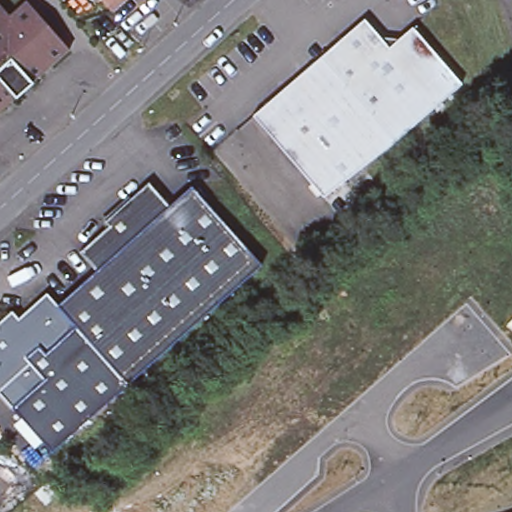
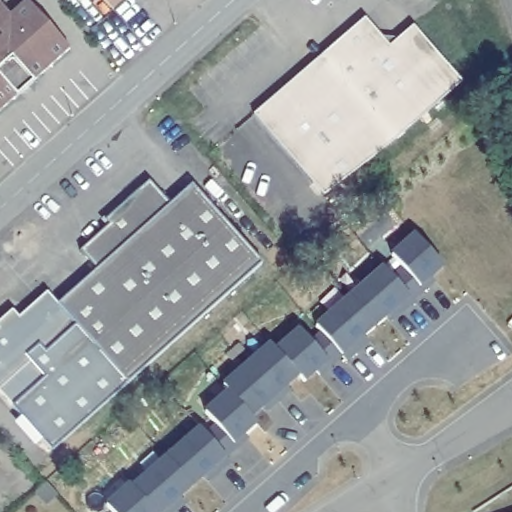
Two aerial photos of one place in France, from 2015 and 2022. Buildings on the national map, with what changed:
unchanged [(113,12),(102,0),(126,0),(113,12)]
unchanged [(33,84),(34,85),(18,100),(16,98),(0,112),(0,6),(10,19),(29,3),(69,51),(33,84)]
unchanged [(366,21),(391,49),(414,28),(463,85),(375,159),(303,75),(366,21)]
unchanged [(254,117),(303,75),(375,159),(324,198),(254,117)]
unchanged [(267,267),(144,377),(78,294),(103,271),(88,253),(116,228),(113,223),(156,186),(174,207),(197,187),(267,267)]
new [(133,483),(199,425),(206,433),(218,421),(206,408),(231,387),(226,380),(270,341),(278,347),(299,327),(314,341),(325,330),(319,323),(387,263),(395,273),(407,263),(396,249),(416,231),(445,265),(364,333),(371,342),(349,358),(343,350),(319,374),(316,368),(306,376),(301,370),(252,415),(258,423),(243,434),(246,439),(161,512),(117,512),(108,500),(131,481),(133,483)]
unchanged [(0,387),(0,338),(4,334),(3,328),(18,313),(24,321),(54,294),(64,306),(83,327),(51,354),(45,347),(33,359),(51,380),(19,409),(0,387)]
unchanged [(64,306),(78,294),(144,377),(134,385),(83,327),(64,306)]
new [(134,385),(54,449),(19,409),(51,380),(33,359),(45,347),(51,354),(83,327),(134,385)]

